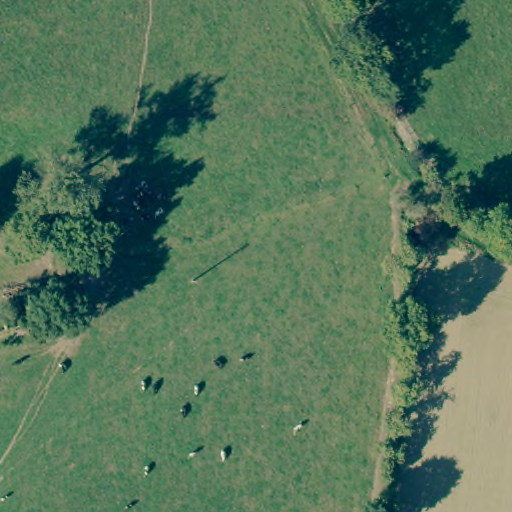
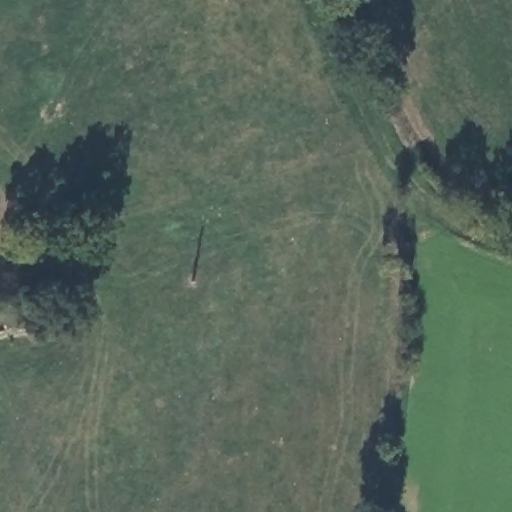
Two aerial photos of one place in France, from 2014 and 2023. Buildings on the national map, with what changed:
unchanged [(33,327),(1,337),(0,334),(0,300),(23,292),(33,327)]

